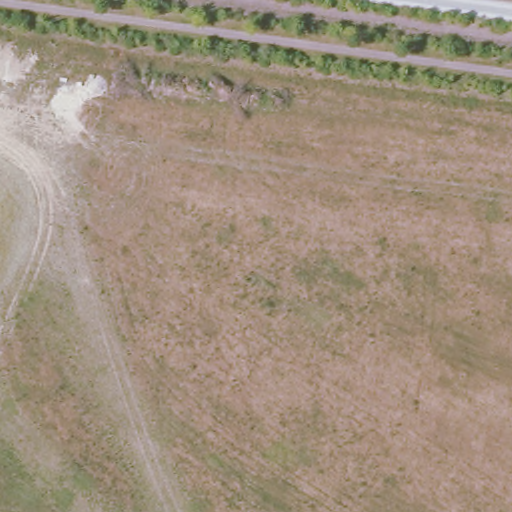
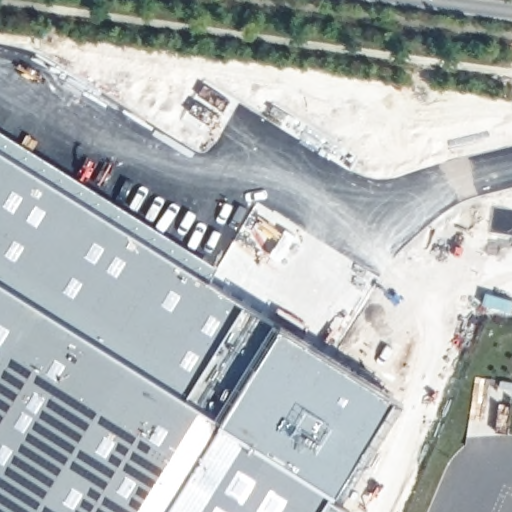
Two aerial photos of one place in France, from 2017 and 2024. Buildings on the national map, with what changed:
new [(217,267),(209,279),(244,301),(277,317),(397,395),(337,495),(351,510),(350,512),(0,512),(0,132),(217,267)]

